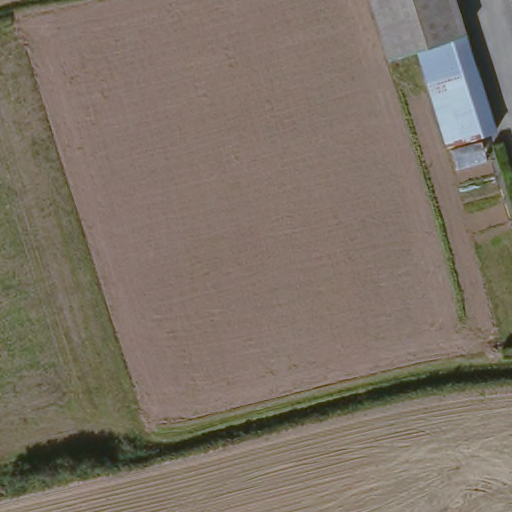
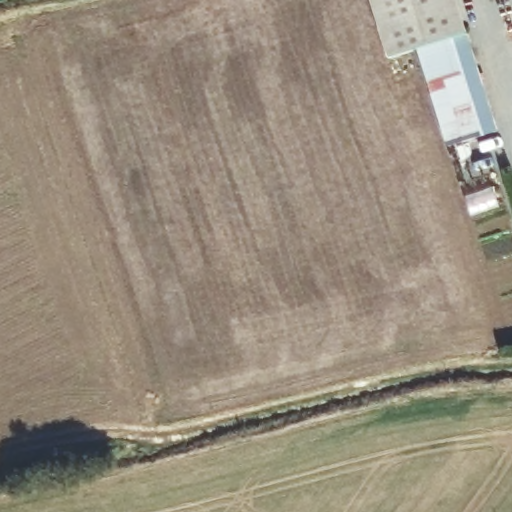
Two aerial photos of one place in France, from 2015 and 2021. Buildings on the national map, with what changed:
unchanged [(384,58),(366,0),(449,0),(460,36),(413,50),(384,58)]
unchanged [(413,50),(460,36),(490,131),(443,145),(413,50)]

